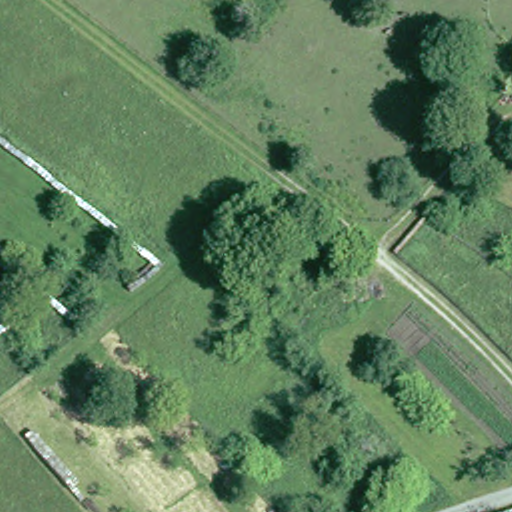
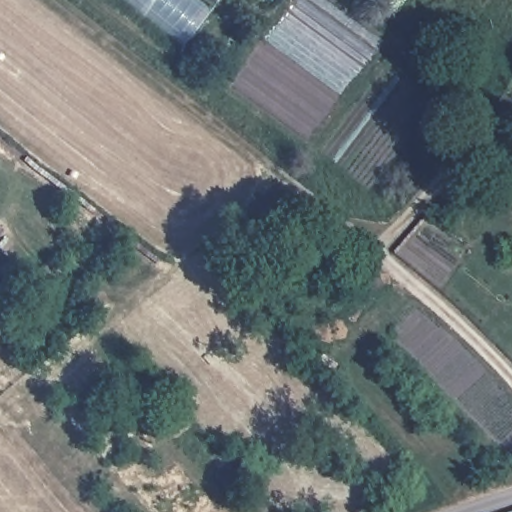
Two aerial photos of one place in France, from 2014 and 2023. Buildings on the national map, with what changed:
new [(183,47),(123,0),(220,0),(183,47)]

